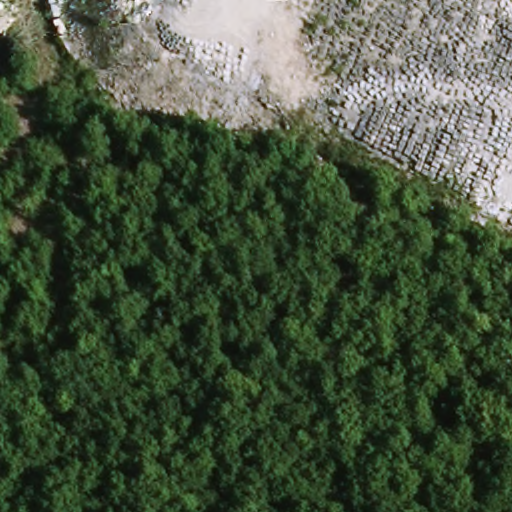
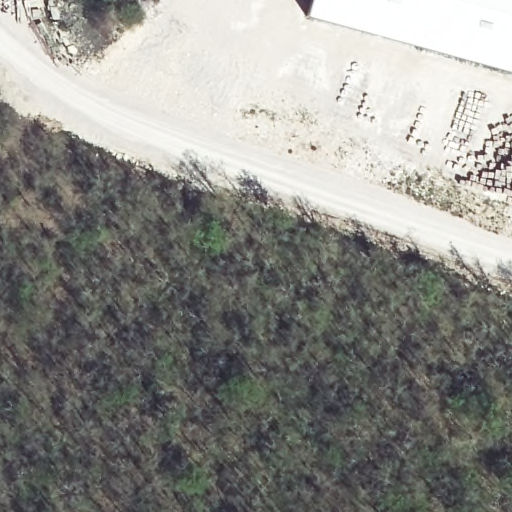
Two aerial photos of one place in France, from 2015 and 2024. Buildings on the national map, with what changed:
new [(308,17),(313,0),(512,0),(512,73),(308,17)]

